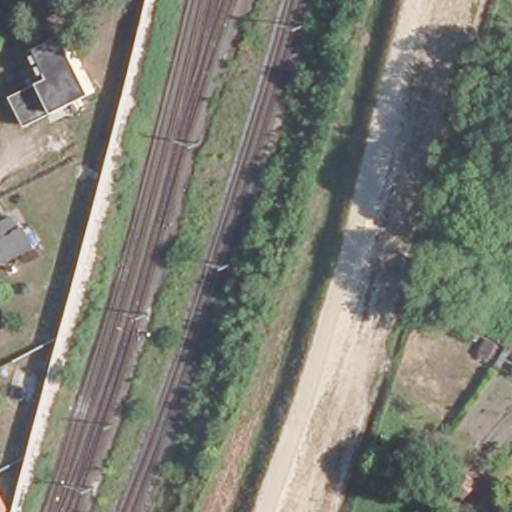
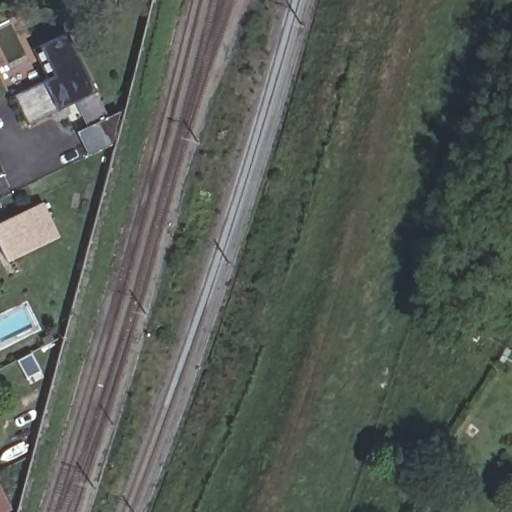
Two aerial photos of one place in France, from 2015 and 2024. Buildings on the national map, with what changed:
unchanged [(14,98),(49,80),(36,49),(66,35),(95,91),(29,124),(14,98)]
new [(52,241),(11,260),(0,234),(0,224),(37,207),(52,241)]
demolished [(21,252),(2,262),(0,256),(0,221),(5,218),(21,252)]
demolished [(251,478),(261,491),(242,507),(231,494),(251,478)]
unchanged [(7,510),(2,512),(0,512),(0,495),(7,510)]

